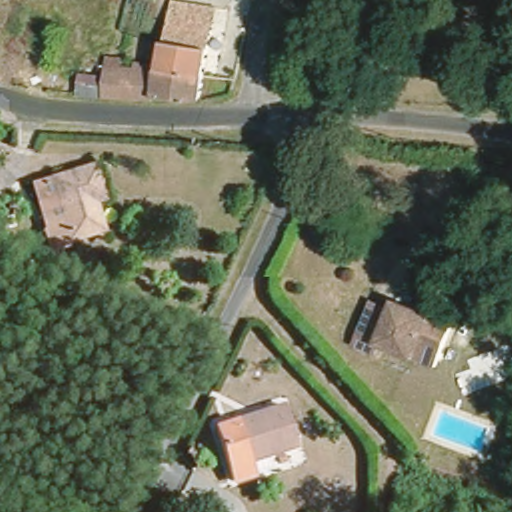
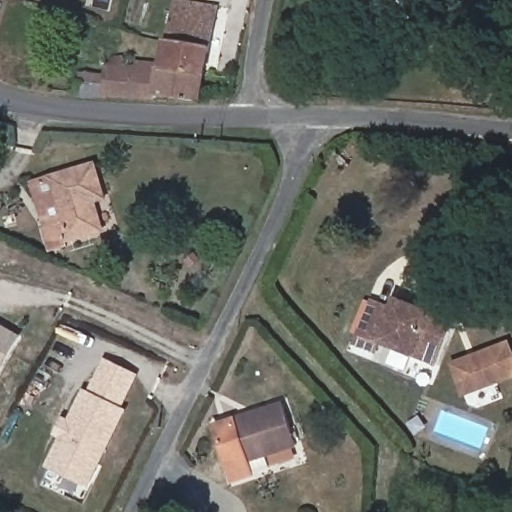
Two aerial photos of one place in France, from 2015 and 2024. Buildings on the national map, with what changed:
unchanged [(210,44),(199,99),(75,92),(77,71),(100,72),(102,54),(156,57),(171,0),(208,0),(218,1),(210,44)]
unchanged [(47,254),(41,233),(38,221),(28,178),(46,172),(92,161),(102,196),(90,199),(98,227),(63,236),(68,247),(47,254)]
unchanged [(375,336),(371,345),(351,336),(368,295),(388,303),(392,292),(417,303),(421,293),(446,304),(453,308),(449,317),(435,348),(430,359),(375,336)]
new [(22,336),(0,375),(0,324),(22,336)]
unchanged [(455,370),(470,364),(468,356),(503,343),(512,368),(462,387),(455,370)]
new [(104,358),(140,375),(123,409),(128,411),(89,490),(45,468),(84,389),(88,391),(104,358)]
unchanged [(214,419),(285,404),(293,446),(244,456),(247,471),(226,476),(214,419)]

